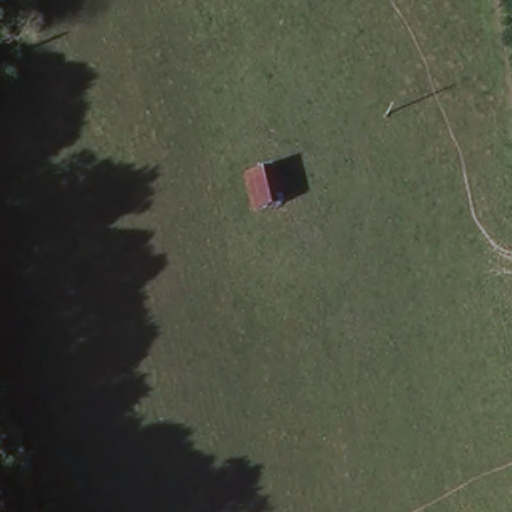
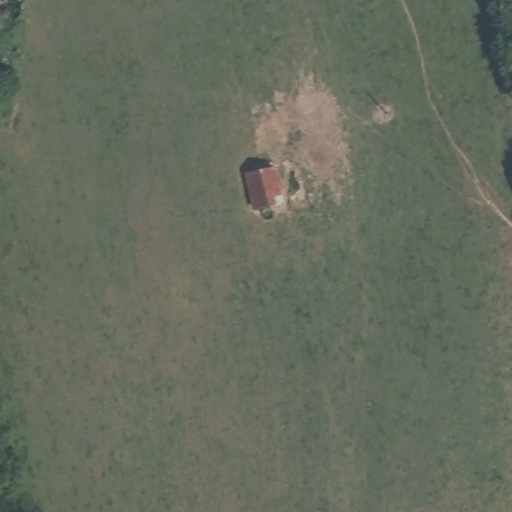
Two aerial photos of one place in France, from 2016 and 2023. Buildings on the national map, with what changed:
unchanged [(274,169),(279,207),(250,212),(246,174),(274,169)]

